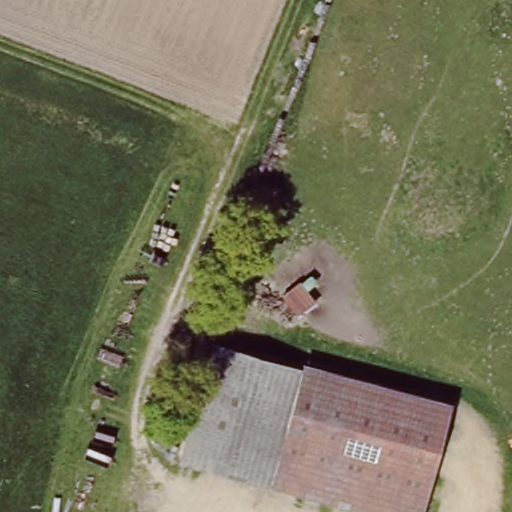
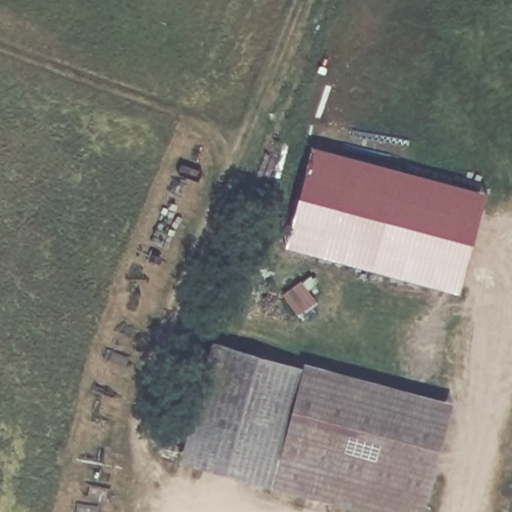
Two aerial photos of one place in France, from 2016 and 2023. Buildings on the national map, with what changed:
new [(460,292),(287,246),(312,146),(486,191),(460,292)]
unchanged [(321,305),(299,322),(280,297),(300,279),(321,305)]
unchanged [(422,512),(374,512),(172,461),(203,337),(450,400),(422,512)]

